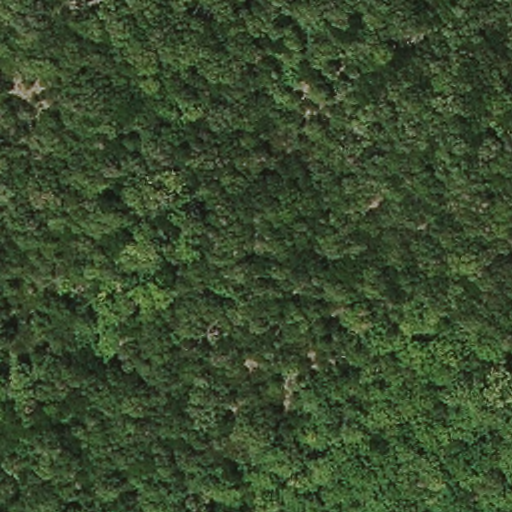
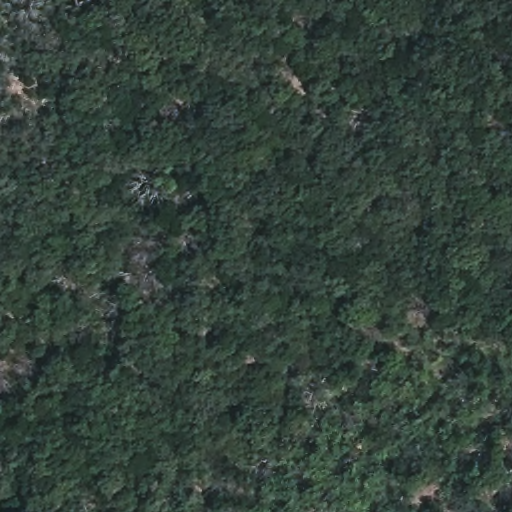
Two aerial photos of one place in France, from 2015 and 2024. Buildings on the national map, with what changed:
unchanged [(63,2),(63,0),(94,0),(94,4),(63,2)]

